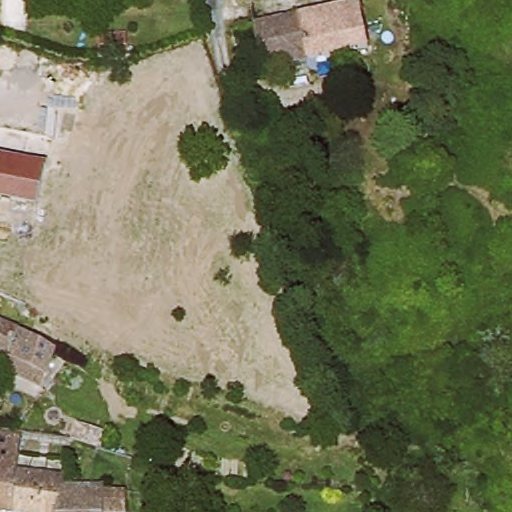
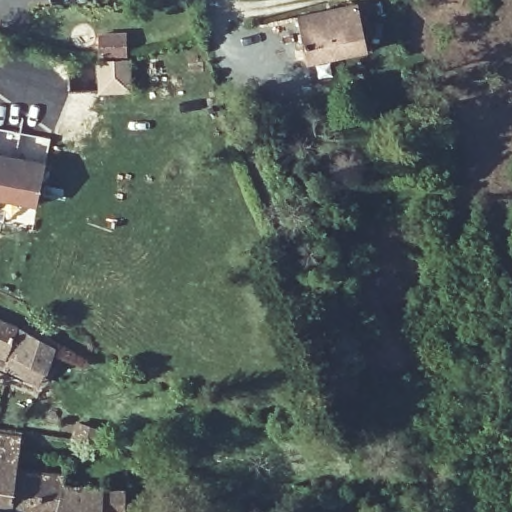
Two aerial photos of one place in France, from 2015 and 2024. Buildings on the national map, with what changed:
unchanged [(243,24),(372,0),(382,48),(258,71),(243,24)]
new [(124,34),(126,37),(131,94),(100,94),(98,34),(124,34)]
unchanged [(407,109),(395,111),(388,74),(399,72),(407,109)]
unchanged [(0,196),(0,128),(53,136),(43,202),(0,196)]
unchanged [(16,325),(7,353),(0,351),(0,319),(16,325)]
unchanged [(48,369),(17,357),(23,329),(59,349),(48,369)]
unchanged [(28,442),(27,457),(68,461),(71,468),(83,471),(84,481),(112,488),(110,512),(13,512),(0,510),(0,438),(28,442)]
unchanged [(126,490),(125,512),(110,512),(112,488),(126,490)]

